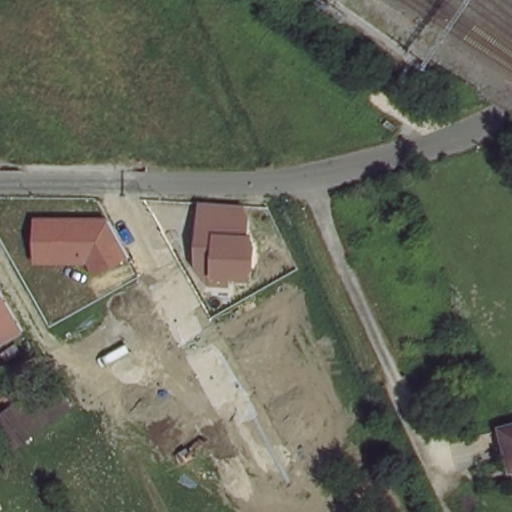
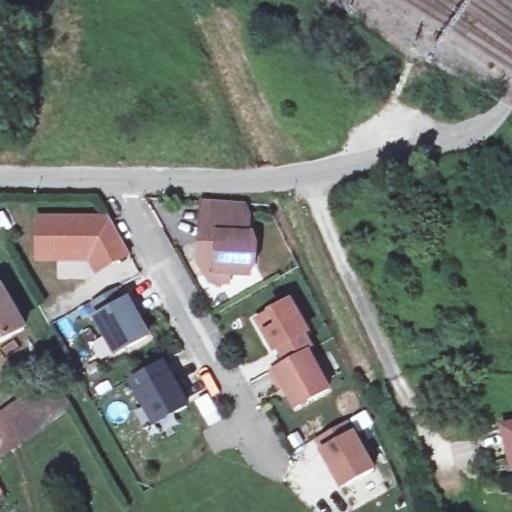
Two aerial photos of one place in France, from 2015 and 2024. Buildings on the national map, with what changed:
unchanged [(249,206),(249,233),(256,242),(254,270),(247,280),(233,280),(233,286),(210,284),(195,264),(199,201),(249,206)]
unchanged [(108,217),(130,256),(96,274),(89,264),(34,264),(34,217),(108,217)]
unchanged [(27,326),(0,343),(0,288),(3,286),(27,326)]
new [(122,299),(126,297),(147,332),(116,350),(95,315),(100,312),(92,298),(114,286),(122,299)]
new [(288,296),(305,326),(302,328),(311,343),(306,346),(328,384),(295,403),(282,380),(278,382),(269,367),(285,357),(277,343),(273,345),(256,315),(288,296)]
new [(186,402),(155,420),(130,376),(161,358),(186,402)]
unchanged [(39,389),(64,416),(8,451),(0,439),(0,412),(39,389)]
new [(373,464),(341,483),(321,446),(322,446),(316,434),(346,416),(373,464)]
unchanged [(512,431),(512,451),(506,433),(512,431)]

